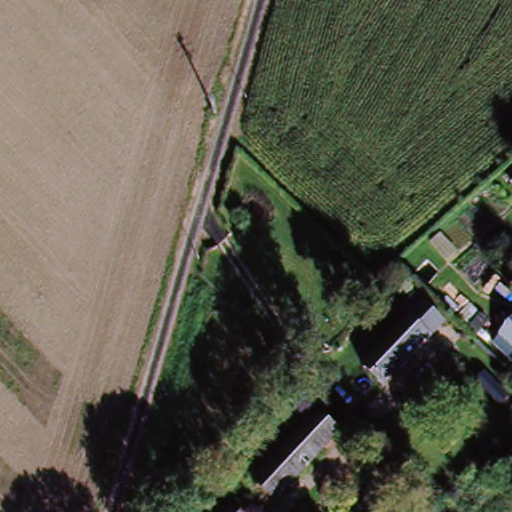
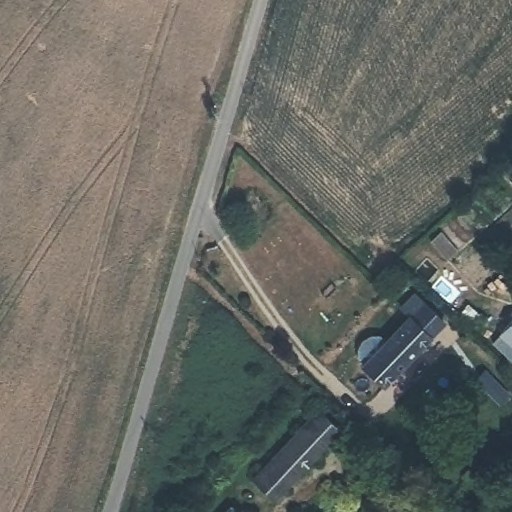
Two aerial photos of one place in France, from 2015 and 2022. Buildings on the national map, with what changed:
unchanged [(432,335),(377,391),(359,372),(414,316),(432,335)]
unchanged [(512,328),(510,326),(512,325),(512,328)]
unchanged [(512,351),(500,338),(510,326),(512,328),(512,351)]
unchanged [(337,432),(274,496),(255,478),(318,413),(337,432)]
unchanged [(229,512),(228,512),(229,511),(229,512)]

